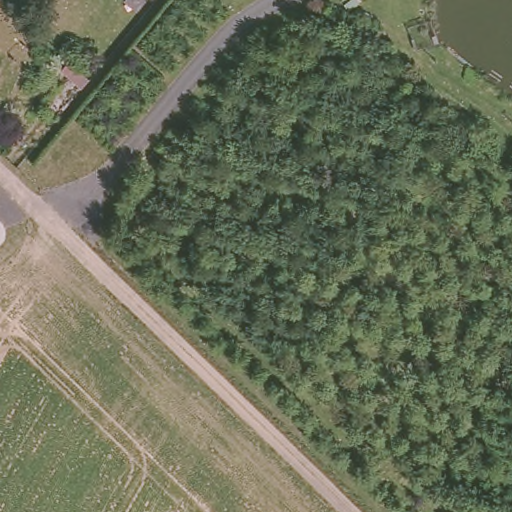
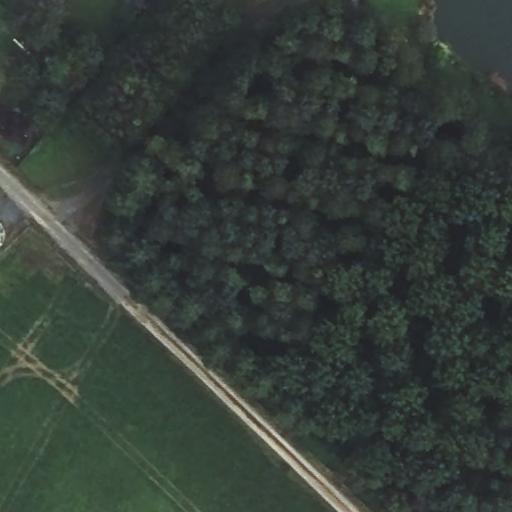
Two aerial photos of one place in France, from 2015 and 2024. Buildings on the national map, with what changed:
unchanged [(146,0),(158,0),(153,7),(146,0)]
unchanged [(67,75),(72,67),(90,84),(84,91),(67,75)]

